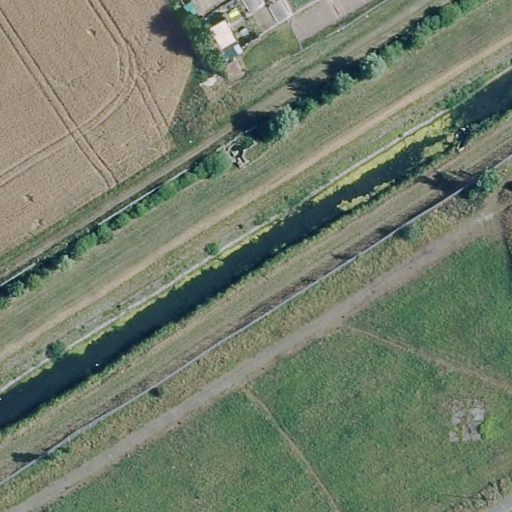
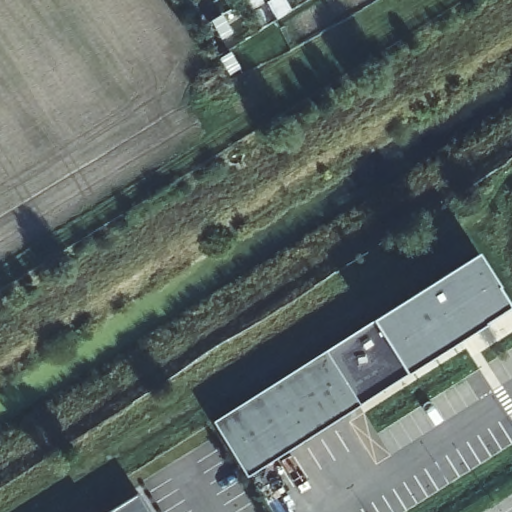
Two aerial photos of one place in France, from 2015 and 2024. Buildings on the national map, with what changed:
new [(473,257),(507,309),(247,480),(211,422),(473,257)]
new [(152,512),(106,512),(139,492),(152,512)]

